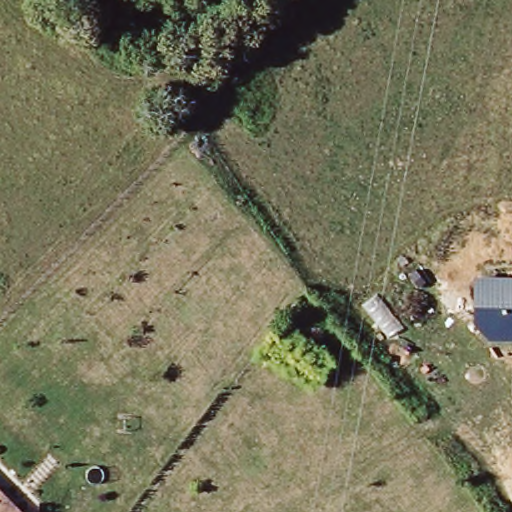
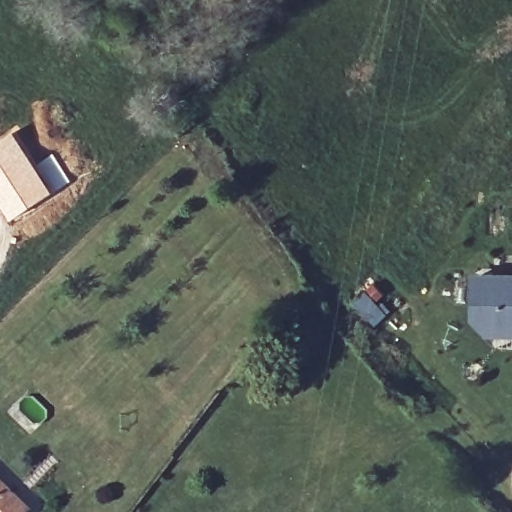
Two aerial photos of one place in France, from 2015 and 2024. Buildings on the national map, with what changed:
new [(15,130),(38,163),(54,152),(72,180),(14,220),(0,199),(0,139),(15,130)]
unchanged [(512,337),(489,337),(475,320),(475,272),(512,272),(512,337)]
unchanged [(0,512),(0,483),(28,512),(0,512)]

